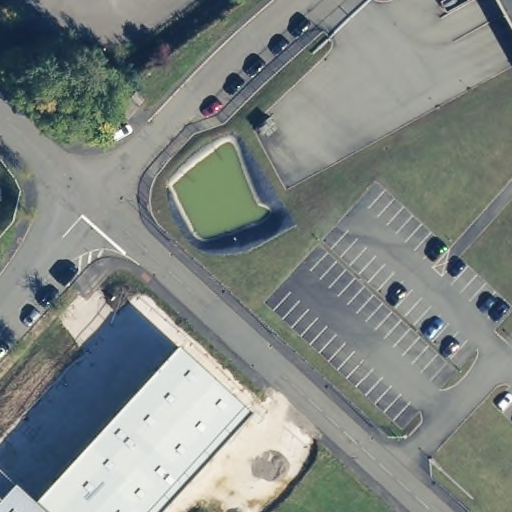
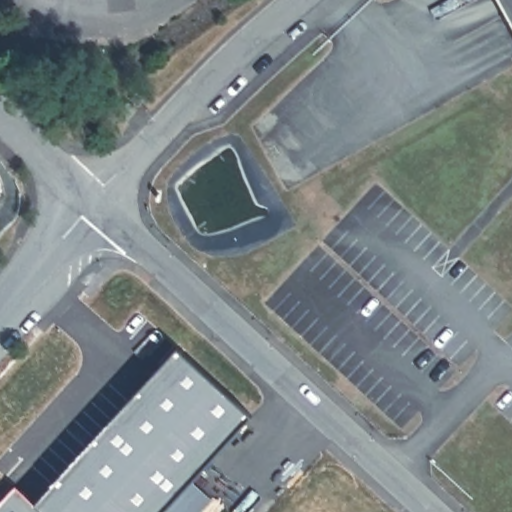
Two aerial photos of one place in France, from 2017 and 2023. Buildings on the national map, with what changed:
unchanged [(512,39),(491,0),(512,0),(512,39)]
unchanged [(136,108),(126,119),(118,112),(128,101),(136,108)]
unchanged [(0,512),(0,501),(15,485),(34,502),(176,348),(251,415),(161,512),(0,512)]

